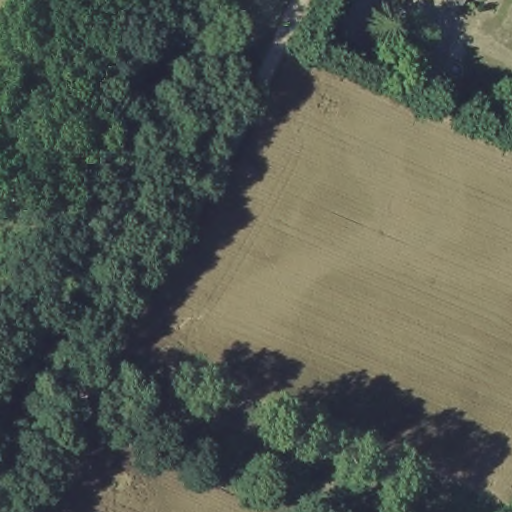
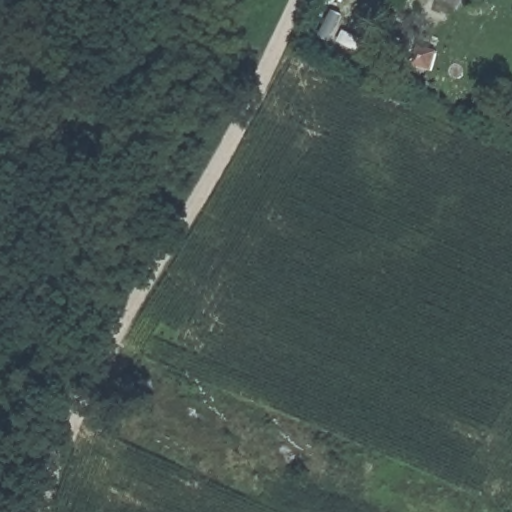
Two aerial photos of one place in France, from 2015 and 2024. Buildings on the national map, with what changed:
unchanged [(431,0),(461,0),(457,11),(431,0)]

